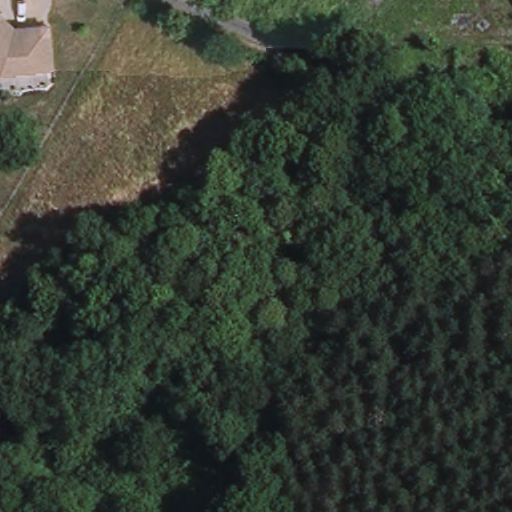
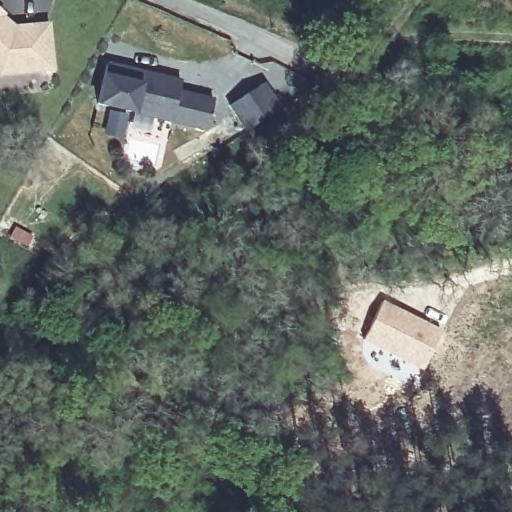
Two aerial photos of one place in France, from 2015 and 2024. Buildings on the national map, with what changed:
unchanged [(0,12),(0,2),(5,6),(0,12)]
unchanged [(46,21),(51,66),(0,70),(0,13),(13,24),(46,21)]
new [(110,62),(184,80),(181,90),(216,99),(209,127),(101,102),(110,62)]
new [(278,101),(275,102),(279,109),(246,131),(229,106),(265,82),(278,101)]
new [(382,299),(443,330),(421,371),(361,339),(382,299)]

